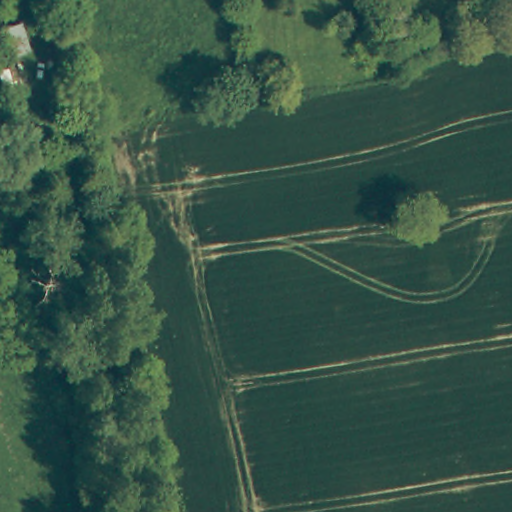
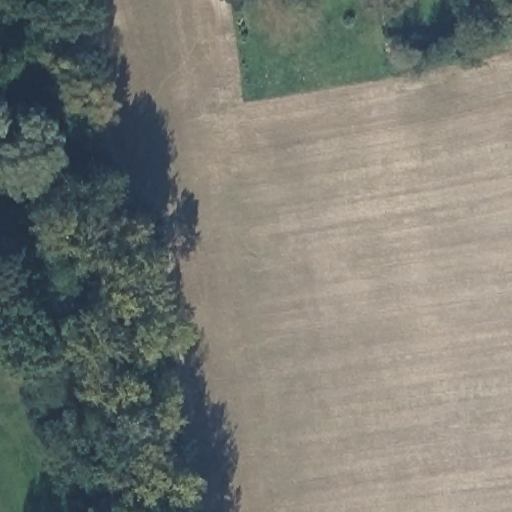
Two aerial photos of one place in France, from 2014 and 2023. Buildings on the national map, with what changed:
unchanged [(491,15),(489,0),(511,0),(512,5),(512,13),(491,15)]

